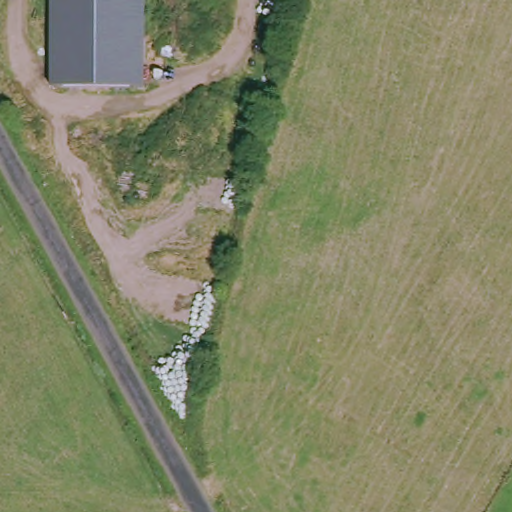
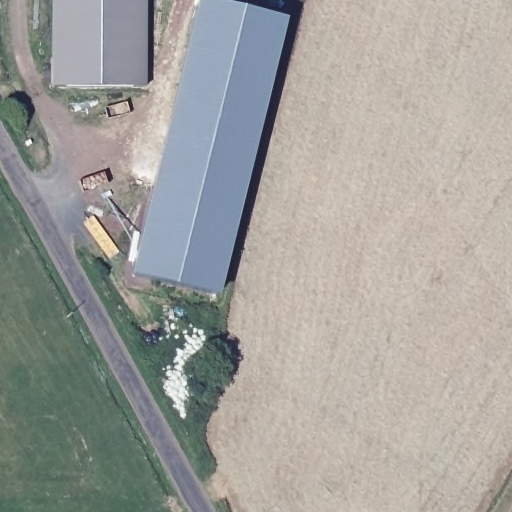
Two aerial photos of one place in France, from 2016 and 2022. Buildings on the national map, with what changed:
unchanged [(142,86),(50,86),(50,0),(144,0),(142,86)]
new [(130,277),(197,1),(285,21),(217,297),(130,277)]

